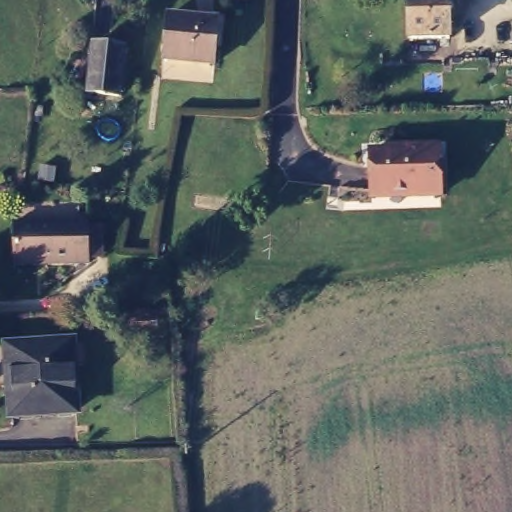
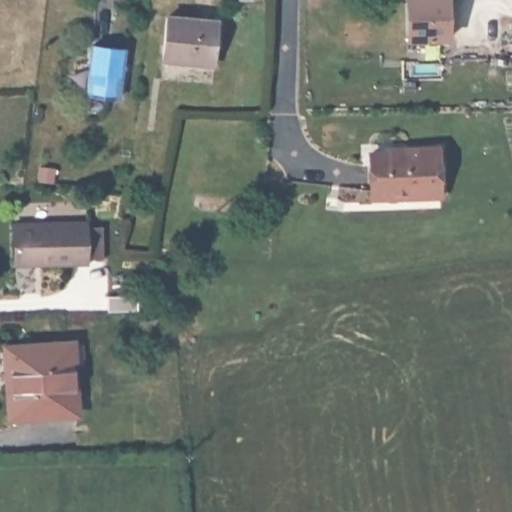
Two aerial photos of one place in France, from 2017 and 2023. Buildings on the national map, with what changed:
unchanged [(411,38),(410,0),(450,0),(451,37),(411,38)]
unchanged [(224,18),(219,60),(167,54),(172,12),(224,18)]
unchanged [(97,48),(120,51),(129,52),(124,101),(90,98),(93,77),(97,48)]
unchanged [(427,195),(401,195),(401,192),(361,192),(361,152),(394,152),(395,147),(428,147),(427,195)]
unchanged [(91,223),(92,264),(19,265),(19,222),(91,223)]
unchanged [(75,407),(11,410),(9,384),(16,384),(12,346),(72,343),(75,407)]

